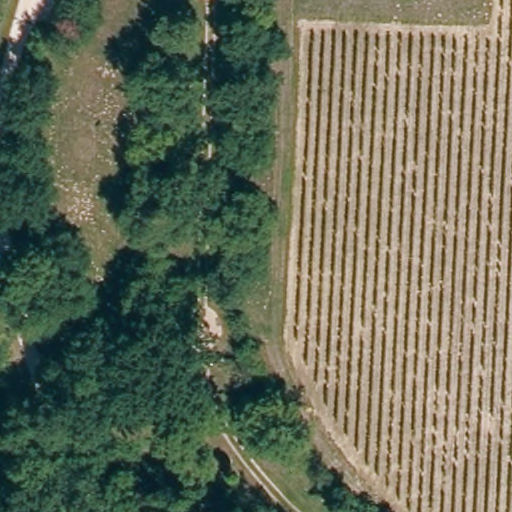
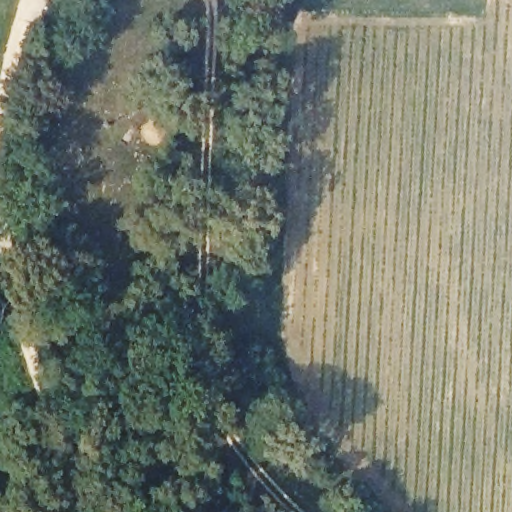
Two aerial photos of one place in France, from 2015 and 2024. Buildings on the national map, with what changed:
[]

